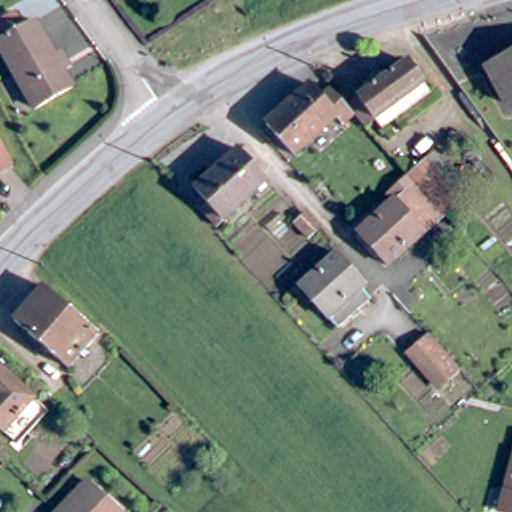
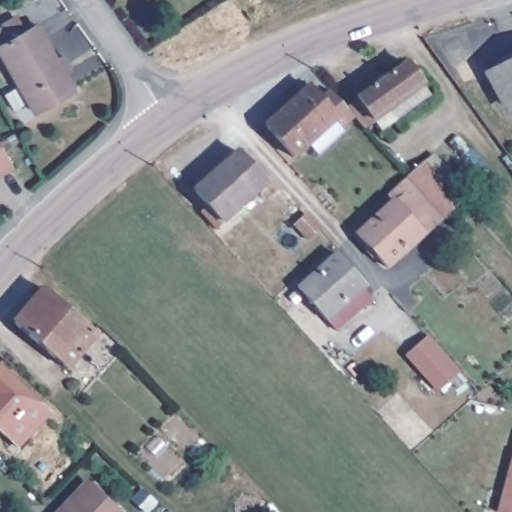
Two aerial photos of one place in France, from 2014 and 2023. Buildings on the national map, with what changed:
unchanged [(80,90),(40,112),(5,47),(45,25),(80,90)]
unchanged [(512,63),(512,101),(496,72),(512,63)]
unchanged [(312,89),(324,101),(333,91),(351,111),(410,66),(428,86),(426,88),(432,96),(384,132),(378,124),(369,131),(356,118),(346,126),(341,120),(299,157),(271,126),(312,89)]
unchanged [(14,166),(0,175),(0,142),(14,166)]
unchanged [(213,209),(199,193),(241,153),(271,185),(227,225),(219,233),(203,216),(213,209)]
unchanged [(432,159),(464,196),(448,209),(416,173),(432,159)]
unchanged [(450,215),(432,231),(404,199),(402,200),(394,193),(414,175),(450,215)]
unchanged [(393,265),(364,233),(402,200),(404,199),(432,231),(393,265)]
unchanged [(299,227),(309,218),(321,230),(311,240),(299,227)]
unchanged [(301,285),(341,250),(369,282),(363,288),(371,297),(368,301),(339,327),(330,318),(301,285)]
unchanged [(18,324),(48,289),(102,337),(71,371),(18,324)]
unchanged [(438,391),(406,355),(426,338),(458,374),(438,391)]
unchanged [(15,439),(0,428),(0,404),(2,402),(0,400),(0,377),(4,373),(43,405),(15,439)]
unchanged [(512,476),(512,512),(502,512),(512,476)]
unchanged [(90,484),(120,512),(62,512),(90,484)]

